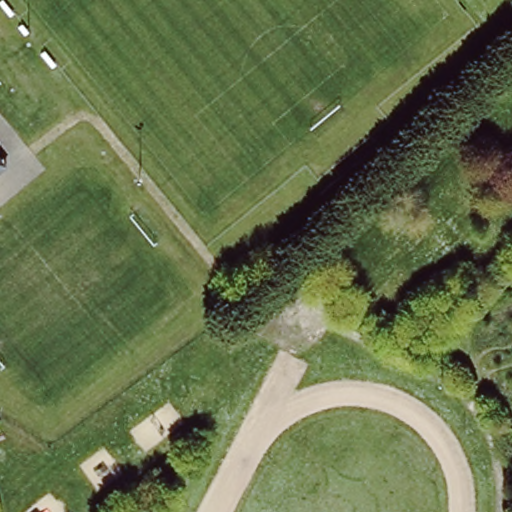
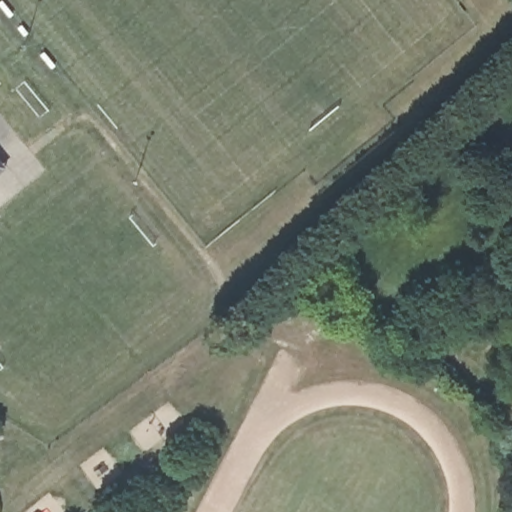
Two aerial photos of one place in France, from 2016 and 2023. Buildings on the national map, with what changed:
unchanged [(10,171),(0,180),(0,159),(10,171)]

